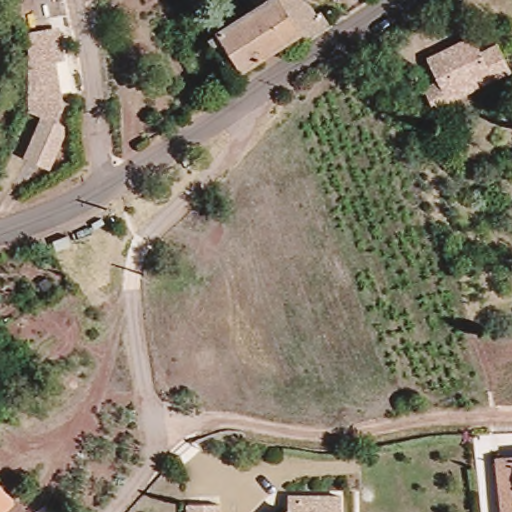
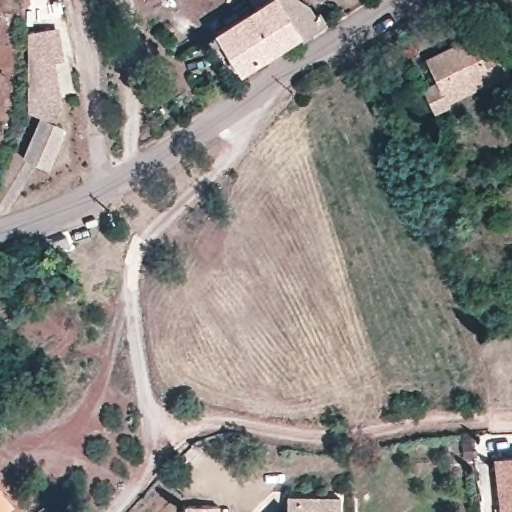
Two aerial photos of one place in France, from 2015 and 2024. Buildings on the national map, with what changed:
unchanged [(310,15),(316,13),(322,25),(297,40),(294,35),(239,70),(215,35),(269,0),(297,0),(303,4),(310,15)]
unchanged [(32,105),(23,33),(45,29),(51,29),(55,57),(48,58),(55,104),(53,108),(51,120),(62,122),(54,164),(26,160),(38,106),(32,105)]
unchanged [(449,104),(432,112),(421,85),(436,77),(426,53),(470,30),(476,41),(491,34),(505,64),(488,71),(445,94),(449,104)]
unchanged [(492,476),(512,471),(512,512),(501,512),(492,476)]
unchanged [(0,511),(0,492),(8,503),(0,511)]
unchanged [(290,508),(290,496),(341,498),(340,512),(285,512),(290,508)]
unchanged [(218,507),(218,512),(188,512),(188,506),(218,507)]

